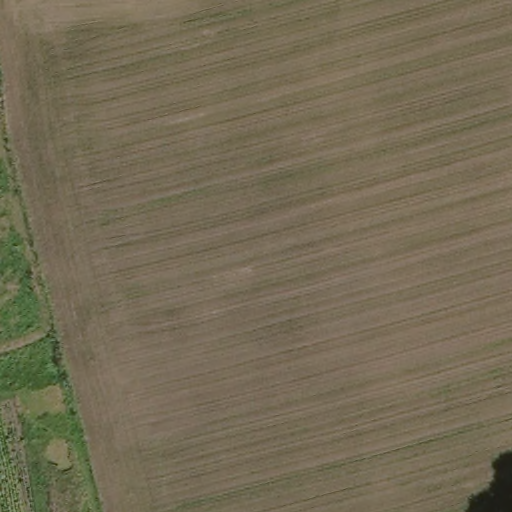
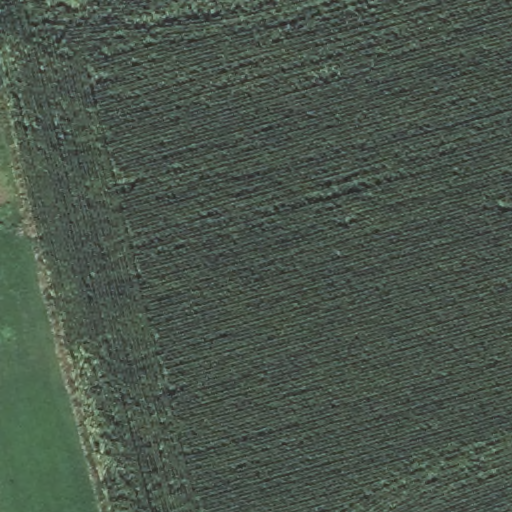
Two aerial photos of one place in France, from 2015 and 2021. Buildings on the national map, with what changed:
[]

